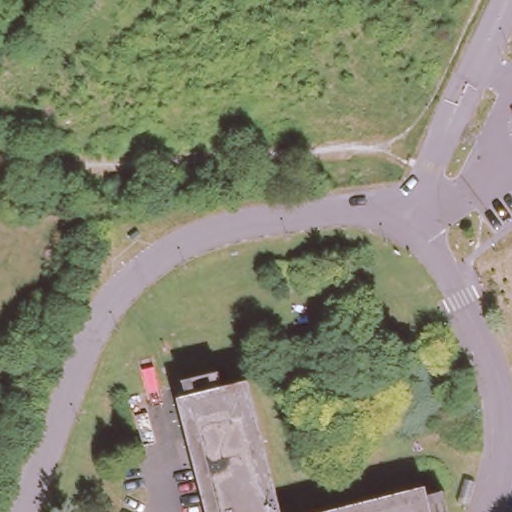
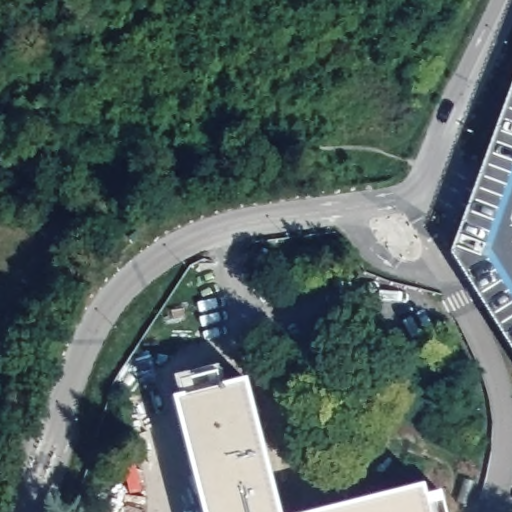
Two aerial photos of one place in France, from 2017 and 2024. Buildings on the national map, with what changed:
new [(482,175),(512,92),(512,187),(482,175)]
new [(512,187),(512,346),(454,254),(482,175),(512,187)]
unchanged [(186,394),(182,378),(221,368),(225,385),(249,378),(282,512),(210,512),(180,396),(186,394)]
unchanged [(430,491),(444,487),(450,512),(315,512),(428,483),(430,491)]

